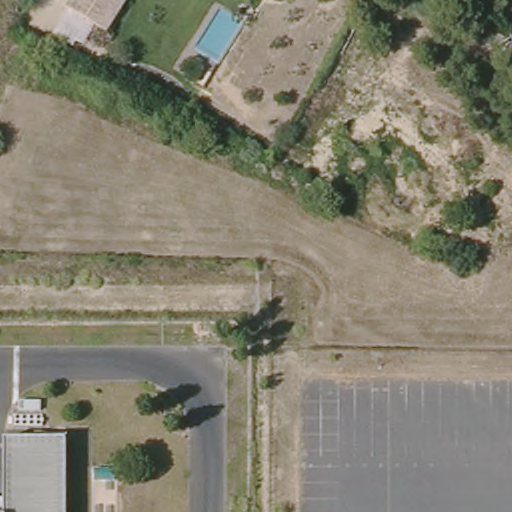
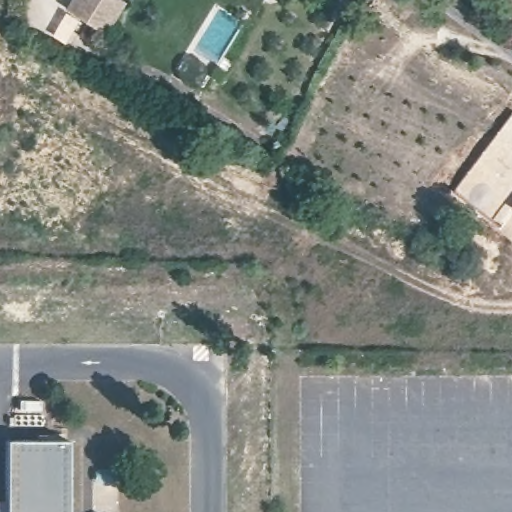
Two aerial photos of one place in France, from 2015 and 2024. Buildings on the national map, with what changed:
unchanged [(72,0),(130,0),(131,0),(115,28),(70,4),(72,0)]
new [(453,189),(512,111),(512,211),(500,227),(453,189)]
unchanged [(5,439),(69,440),(68,512),(5,512),(5,439)]

